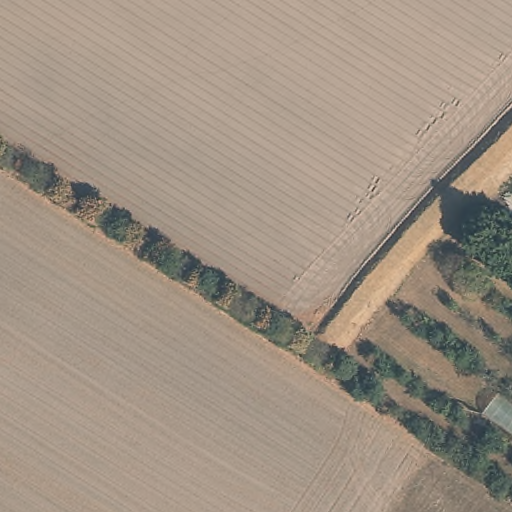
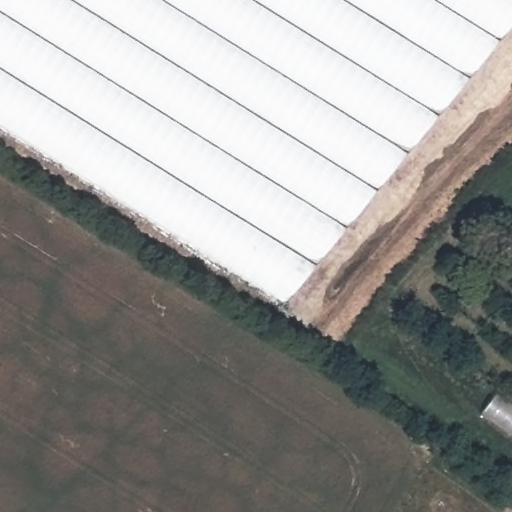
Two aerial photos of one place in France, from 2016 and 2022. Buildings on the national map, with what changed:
new [(512,26),(283,304),(0,128),(0,0),(512,0),(512,26)]

